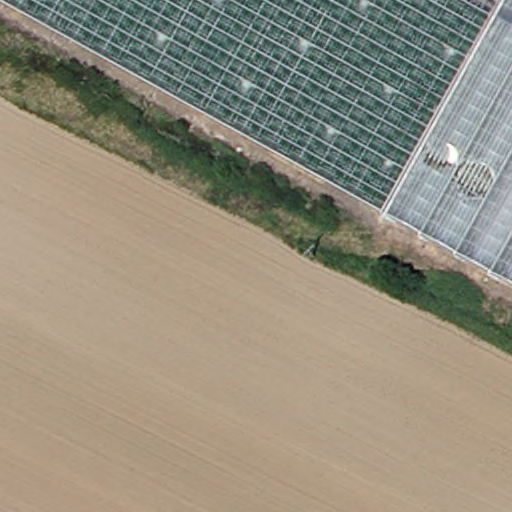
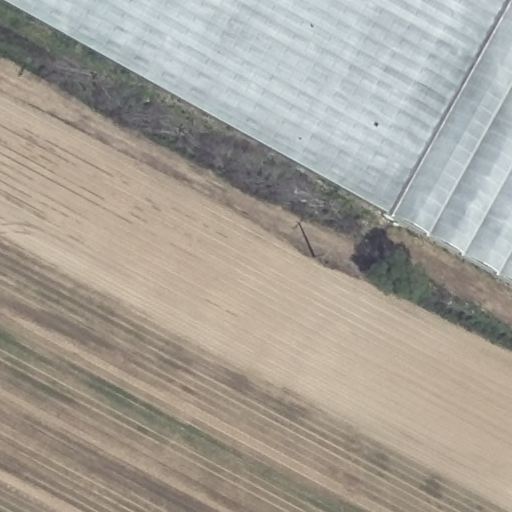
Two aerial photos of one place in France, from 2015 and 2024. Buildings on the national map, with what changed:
unchanged [(7,0),(501,0),(386,208),(7,0)]
unchanged [(512,0),(512,281),(386,208),(501,0),(512,0)]

